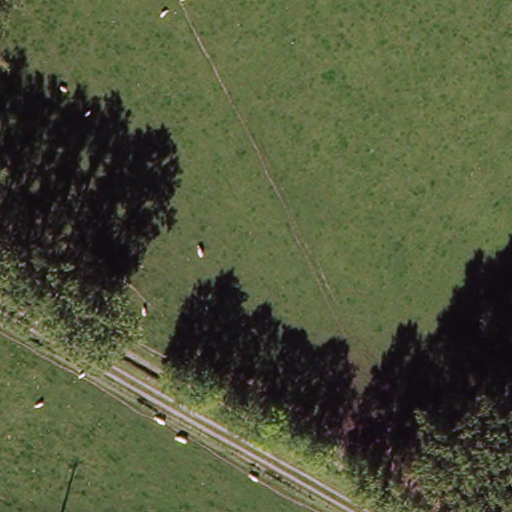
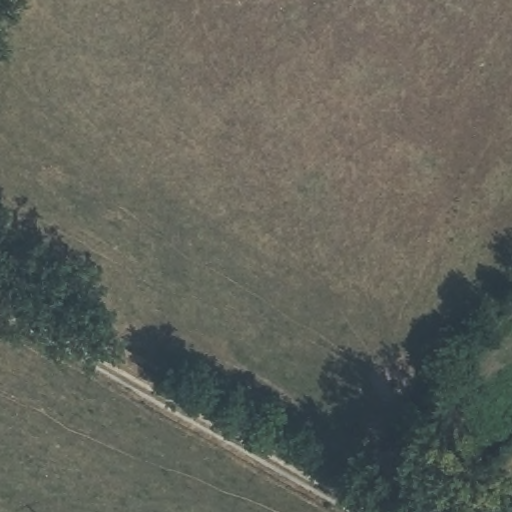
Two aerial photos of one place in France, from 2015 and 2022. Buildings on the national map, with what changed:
[]

